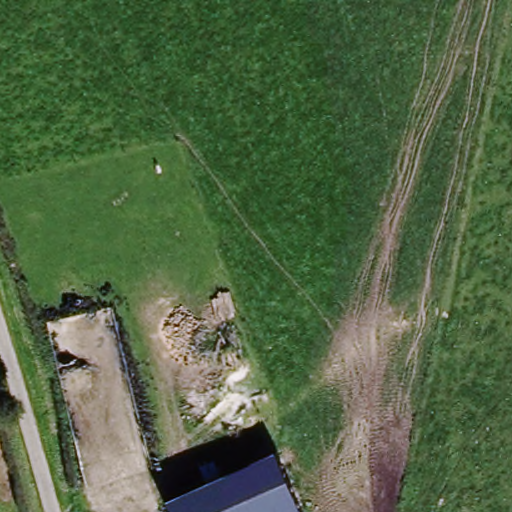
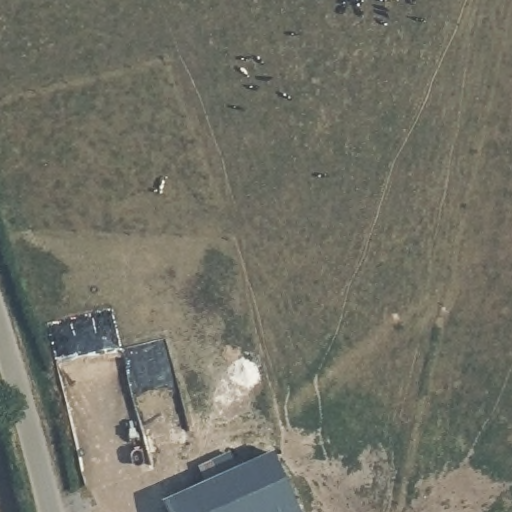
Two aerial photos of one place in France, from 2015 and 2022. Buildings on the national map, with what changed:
unchanged [(284,460),(300,512),(173,512),(167,494),(284,460)]

